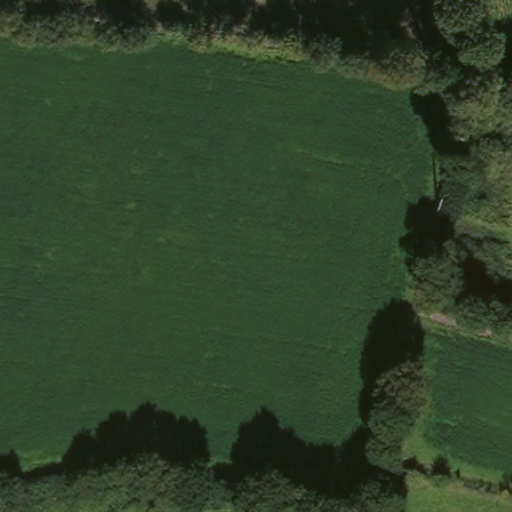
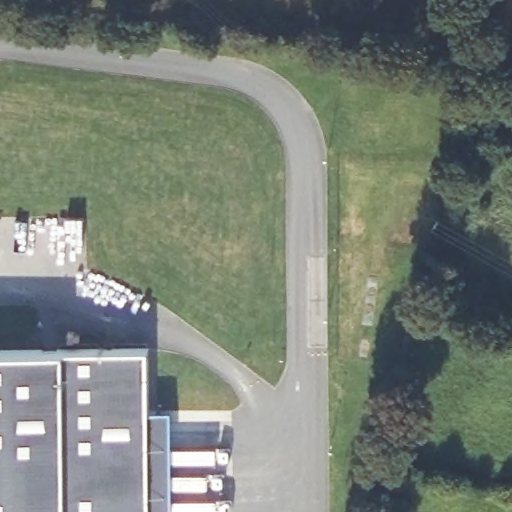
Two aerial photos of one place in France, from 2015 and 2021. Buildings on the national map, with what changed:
new [(146,348),(147,512),(0,512),(0,350),(61,349),(146,348)]

